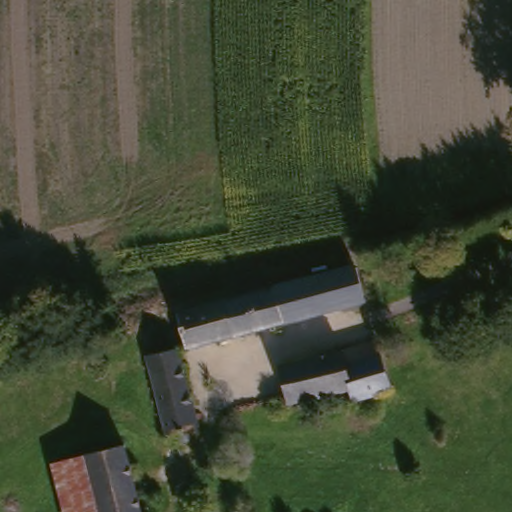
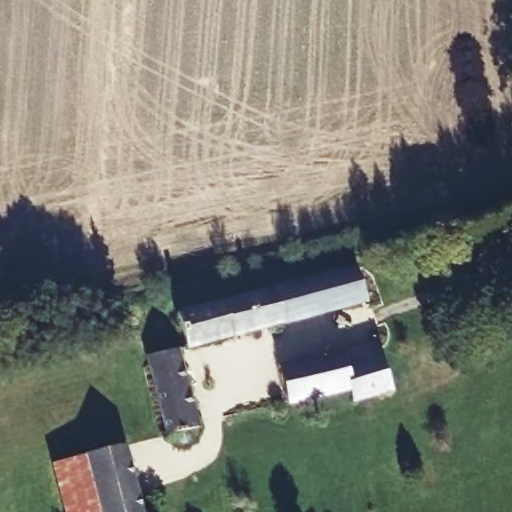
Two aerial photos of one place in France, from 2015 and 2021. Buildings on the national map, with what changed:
unchanged [(281,288),(354,270),(363,306),(230,340),(220,303),(281,288)]
unchanged [(176,314),(220,303),(230,340),(183,352),(176,314)]
unchanged [(386,391),(348,402),(344,390),(285,403),(275,366),(375,344),(386,391)]
unchanged [(196,428),(180,433),(165,437),(161,426),(147,358),(177,350),(178,353),(196,428)]
unchanged [(122,442),(139,512),(99,512),(85,453),(122,442)]
unchanged [(99,512),(65,512),(52,461),(85,453),(99,512)]

